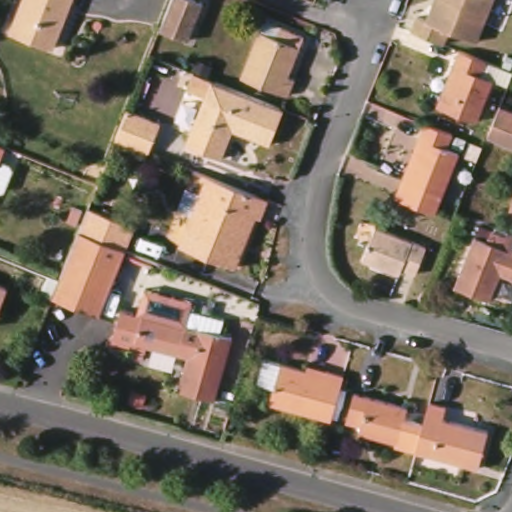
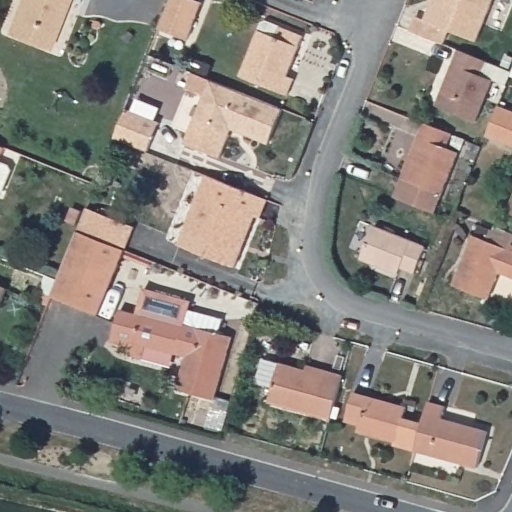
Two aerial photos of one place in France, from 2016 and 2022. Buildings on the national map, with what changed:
unchanged [(29,0),(76,0),(58,48),(17,32),(29,0)]
unchanged [(165,24),(174,0),(207,0),(193,35),(165,24)]
unchanged [(499,0),(482,41),(455,30),(448,44),(416,30),(422,16),(431,20),(437,5),(439,0),(499,0)]
unchanged [(247,76),(267,24),(272,21),(308,36),(292,75),(300,79),(293,95),(247,76)]
unchanged [(463,50),(512,69),(512,85),(498,80),(482,121),(447,107),(442,105),(458,65),(463,50)]
unchanged [(197,69),(202,59),(217,65),(214,75),(197,69)]
unchanged [(227,157),(191,143),(209,96),(191,89),(197,72),(216,80),(287,109),(273,144),(238,129),(235,135),(227,157)]
unchanged [(505,101),(512,105),(512,140),(492,132),(505,101)]
unchanged [(152,147),(121,134),(132,105),(164,118),(152,147)]
unchanged [(424,137),(430,122),(457,134),(452,147),(463,152),(439,212),(405,199),(400,197),(424,137)]
unchanged [(457,145),(461,135),(470,139),(466,148),(457,145)]
unchanged [(477,143),(487,147),(482,161),(471,157),(477,143)]
unchanged [(15,166),(17,172),(10,191),(4,193),(0,191),(0,144),(10,148),(5,162),(15,166)]
unchanged [(240,267),(185,245),(212,175),(273,199),(265,218),(261,216),(247,249),(240,267)]
unchanged [(131,224),(140,227),(131,250),(84,232),(93,208),(107,214),(109,209),(133,218),(131,224)]
unchanged [(500,270),(497,276),(501,278),(493,298),(461,285),(481,235),(485,225),(497,230),(499,225),(512,231),(512,275),(503,272),(500,270)]
unchanged [(432,247),(421,273),(407,267),(405,274),(367,258),(380,226),(432,247)]
unchanged [(105,313),(58,295),(64,280),(84,232),(131,250),(105,313)]
unchanged [(12,287),(0,318),(0,283),(12,287)]
unchanged [(152,344),(148,357),(136,354),(139,345),(122,341),(119,335),(126,309),(177,323),(179,317),(192,321),(195,310),(228,318),(224,333),(237,337),(220,399),(183,388),(192,355),(152,344)]
unchanged [(343,418),(337,416),(337,418),(276,402),(280,388),(262,383),(269,359),(286,363),(312,370),(312,365),(332,371),(348,375),(346,387),(352,389),(343,418)]
unchanged [(412,407),(410,418),(428,423),(421,450),(401,445),(401,442),(364,431),(366,425),(352,421),(360,392),(412,407)]
unchanged [(450,406),(447,418),(493,431),(483,468),(421,450),(428,423),(435,402),(450,406)]

